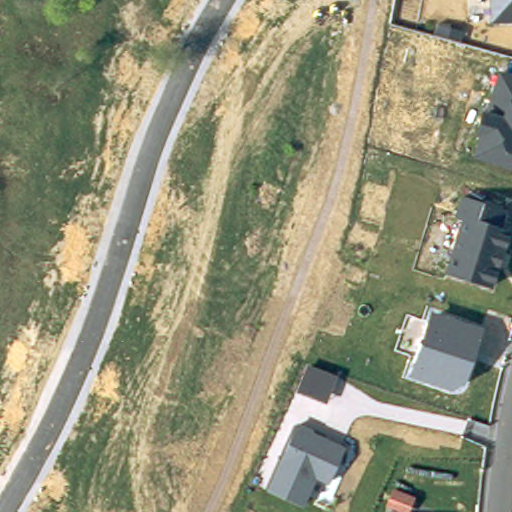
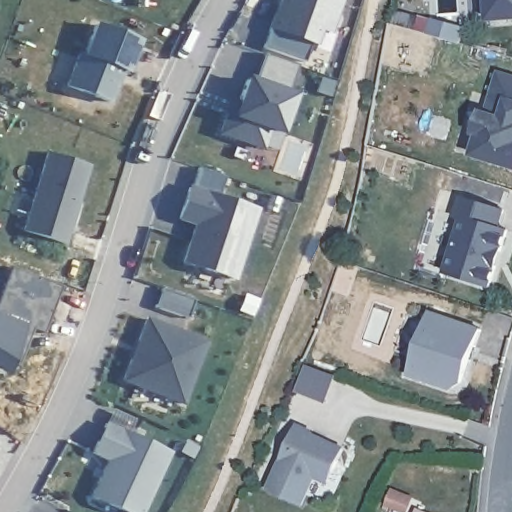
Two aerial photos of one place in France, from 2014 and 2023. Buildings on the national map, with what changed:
new [(280,18),(284,7),(277,4),(278,0),(335,0),(325,30),(315,26),(310,42),(307,41),(300,61),(259,46),(270,16),(280,18)]
unchanged [(512,0),(512,20),(492,21),(490,0),(512,0)]
new [(92,24),(139,42),(126,74),(122,72),(110,104),(65,86),(76,52),(82,54),(92,24)]
new [(234,109),(244,77),(253,79),(262,55),(295,66),(285,92),(293,95),(279,136),(267,132),(262,149),(217,134),(225,106),(234,109)]
unchanged [(483,134),(477,132),(482,115),(489,117),(501,74),(512,77),(512,165),(475,154),(483,134)]
new [(89,166),(65,245),(22,230),(46,152),(89,166)]
new [(177,221),(187,187),(257,210),(234,280),(180,262),(191,226),(177,221)]
unchanged [(465,218),(457,216),(462,198),(506,212),(501,227),(508,229),(490,287),(447,273),(465,218)]
new [(42,333),(31,329),(17,367),(9,364),(4,375),(0,373),(0,291),(9,267),(60,286),(42,333)]
new [(162,288),(195,301),(189,319),(155,307),(162,288)]
unchanged [(431,313),(482,328),(466,382),(454,389),(411,376),(431,313)]
new [(207,340),(182,406),(121,382),(145,317),(207,340)]
new [(308,367),(336,377),(326,402),(299,392),(308,367)]
new [(90,454),(105,422),(170,452),(143,512),(122,512),(89,497),(105,461),(90,454)]
unchanged [(330,486),(317,481),(305,507),(267,491),(297,426),(345,447),(330,486)]

